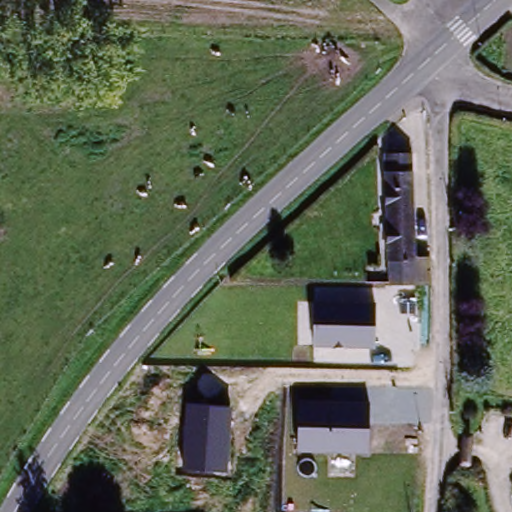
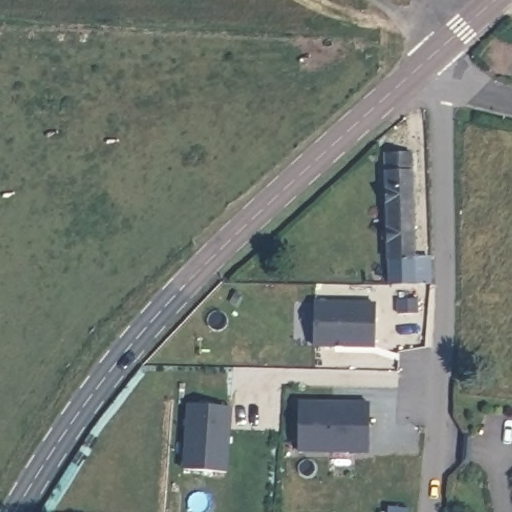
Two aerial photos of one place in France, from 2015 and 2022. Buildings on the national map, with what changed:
unchanged [(412,289),(413,301),(392,301),(391,288),(388,156),(414,155),(418,260),(432,260),(436,288),(412,289)]
unchanged [(374,303),(374,347),(314,346),(316,301),(374,303)]
unchanged [(369,451),(298,451),(299,401),(370,402),(369,451)]
unchanged [(228,472),(184,470),(189,404),(233,406),(228,472)]

